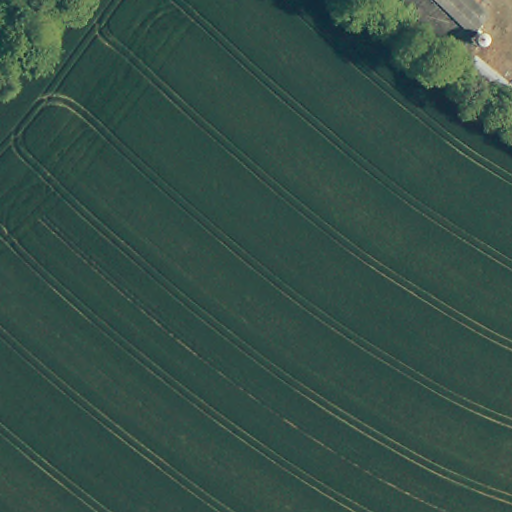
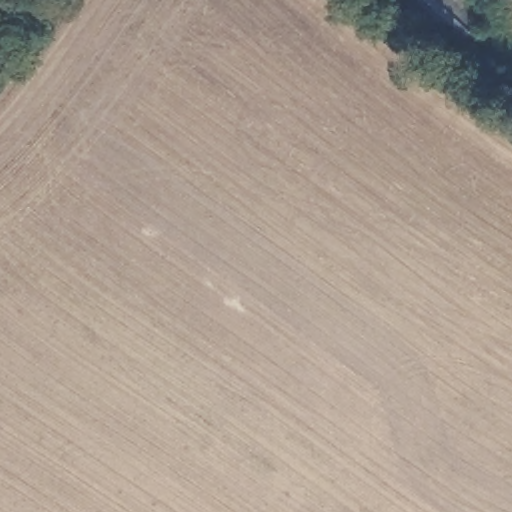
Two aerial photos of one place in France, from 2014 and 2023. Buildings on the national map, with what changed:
unchanged [(485,14),(453,50),(399,0),(471,0),(485,14)]
unchanged [(512,89),(502,102),(463,69),(476,53),(512,83),(512,89)]
unchanged [(507,112),(499,124),(480,110),(488,98),(507,112)]

